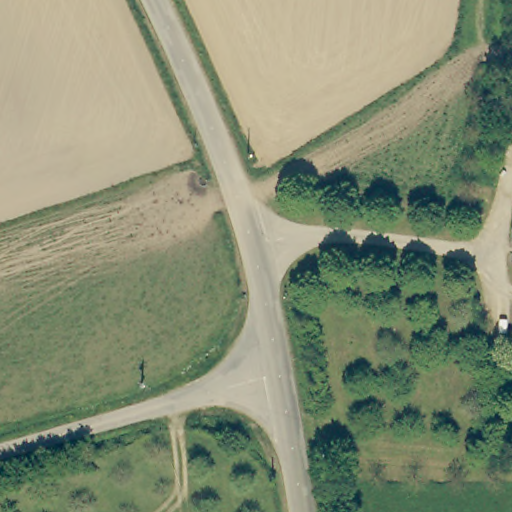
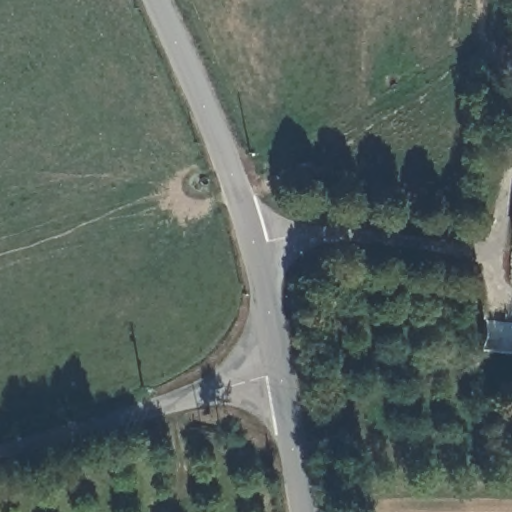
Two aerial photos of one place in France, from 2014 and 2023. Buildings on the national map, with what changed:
unchanged [(512,351),(510,352),(510,331),(512,331),(512,351)]

